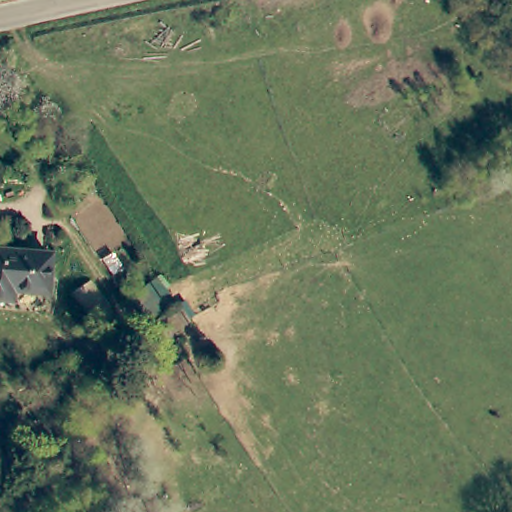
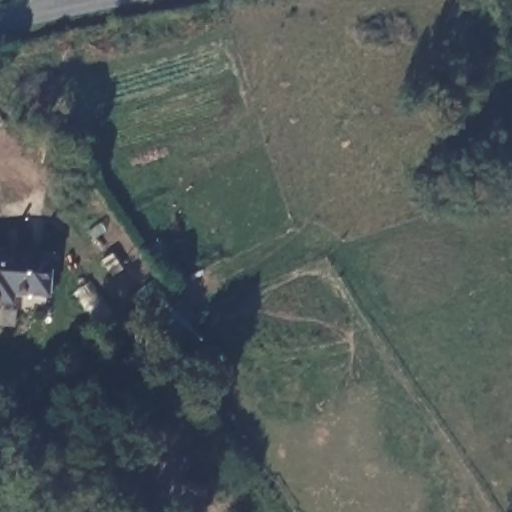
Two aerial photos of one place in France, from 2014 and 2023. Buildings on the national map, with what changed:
unchanged [(10,289),(9,302),(0,301),(0,248),(49,254),(46,294),(10,289)]
unchanged [(189,321),(190,324),(162,344),(150,327),(179,306),(189,321)]

